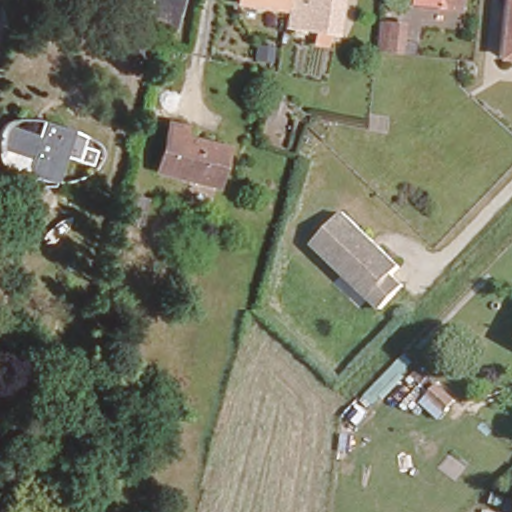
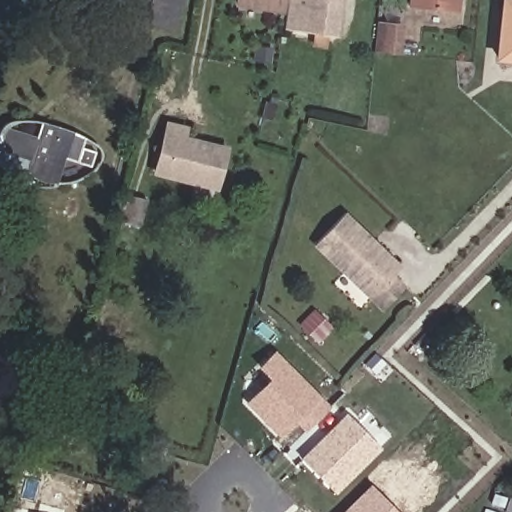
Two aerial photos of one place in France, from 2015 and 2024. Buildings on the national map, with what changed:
unchanged [(157,0),(187,0),(174,45),(146,38),(157,0)]
unchanged [(293,13),(249,7),(249,0),(295,0),(293,13)]
unchanged [(347,38),(295,31),(299,0),(353,0),(347,38)]
unchanged [(457,9),(408,4),(409,0),(457,0),(457,9)]
unchanged [(512,1),(512,59),(498,57),(504,0),(512,1)]
unchanged [(401,24),(398,50),(377,48),(380,22),(401,24)]
unchanged [(272,49),(269,63),(254,60),(256,46),(272,49)]
unchanged [(71,142),(100,150),(100,153),(100,156),(99,159),(97,166),(92,170),(66,162),(60,182),(55,182),(50,182),(43,180),(37,178),(33,175),(28,171),(32,157),(7,149),(2,150),(1,153),(0,153),(0,132),(4,125),(35,134),(38,121),(45,123),(74,131),(71,142)]
unchanged [(184,129),(182,138),(225,149),(215,187),(155,171),(168,125),(184,129)]
unchanged [(125,203),(147,209),(140,234),(118,229),(125,203)]
unchanged [(402,263),(393,271),(405,282),(382,306),(315,240),(345,209),(402,263)]
new [(330,408),(306,431),(292,416),(276,432),(247,402),(271,378),(259,366),(274,351),(330,408)]
demolished [(426,398),(440,384),(457,401),(444,415),(426,398)]
new [(335,492),(301,459),(317,443),(322,438),(347,414),(380,447),(335,492)]
new [(397,512),(342,512),(370,484),(397,512)]
unchanged [(512,499),(512,512),(508,512),(505,511),(508,498),(512,499)]

